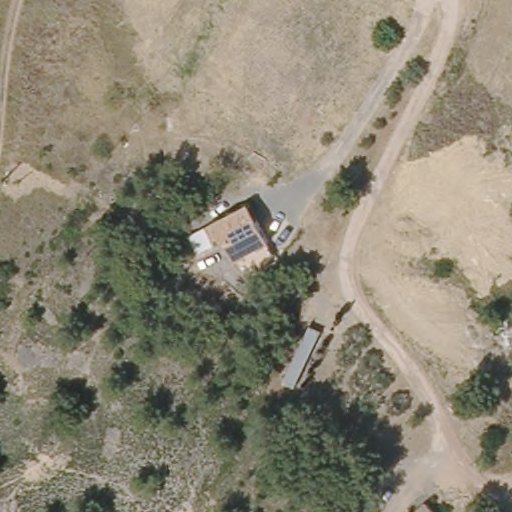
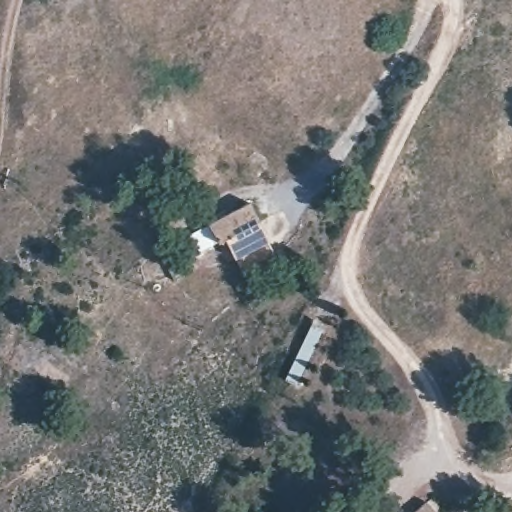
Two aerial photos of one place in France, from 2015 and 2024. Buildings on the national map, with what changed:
unchanged [(264,246),(262,246),(269,260),(236,276),(230,263),(220,244),(212,248),(203,230),(244,208),(264,246)]
unchanged [(423,502),(432,512),(411,512),(423,502)]

